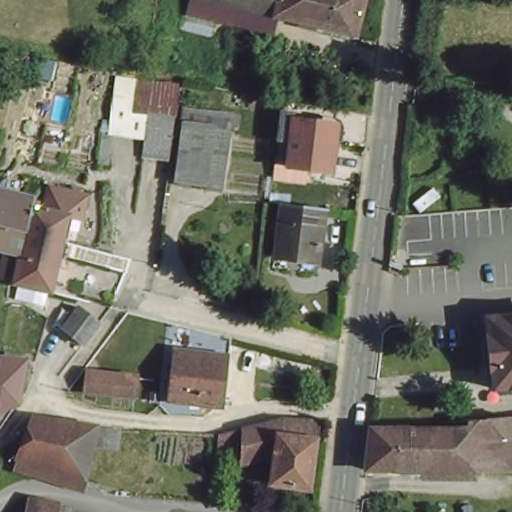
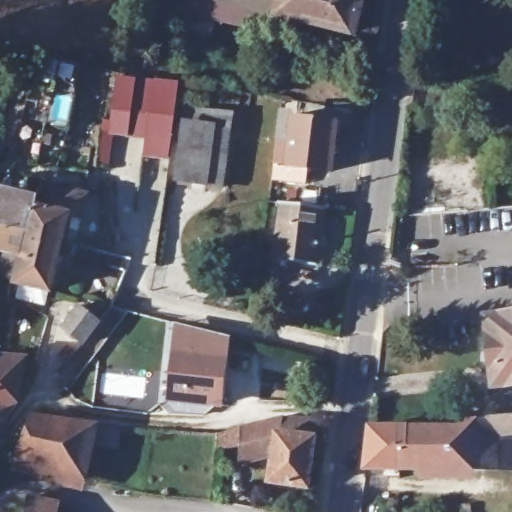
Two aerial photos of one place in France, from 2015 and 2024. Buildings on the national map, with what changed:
unchanged [(350,35),(213,0),(358,0),(350,35)]
unchanged [(145,156),(145,139),(103,132),(112,74),(182,84),(169,156),(145,156)]
unchanged [(335,108),(330,156),(307,153),(305,169),(270,166),(272,149),(278,149),(280,138),(282,120),(284,103),(335,108)]
unchanged [(219,121),(217,176),(187,175),(189,120),(219,121)]
unchanged [(0,262),(3,250),(0,249),(0,225),(5,226),(13,195),(19,196),(31,199),(30,205),(43,208),(48,186),(83,193),(77,215),(65,212),(58,239),(53,260),(46,288),(11,279),(0,276),(0,262)]
unchanged [(323,213),(317,263),(273,258),(279,207),(323,213)]
unchanged [(98,322),(83,343),(60,328),(76,307),(98,322)]
unchanged [(494,389),(486,316),(512,314),(512,387),(494,389)]
unchanged [(226,355),(221,403),(171,398),(176,349),(226,355)]
unchanged [(20,401),(0,411),(0,370),(2,370),(4,361),(0,361),(0,354),(27,358),(20,401)]
unchanged [(140,401),(92,397),(94,378),(105,366),(125,367),(123,380),(141,382),(140,401)]
unchanged [(36,477),(11,470),(15,459),(31,415),(95,426),(108,427),(101,447),(90,444),(83,478),(80,489),(36,477)]
unchanged [(466,466),(465,428),(465,423),(511,418),(512,418),(512,432),(512,443),(512,466),(495,466),(466,466)]
unchanged [(273,467),(236,477),(241,451),(214,448),(216,434),(244,428),(282,420),(273,467)]
unchanged [(328,421),(327,432),(314,431),(304,489),(269,484),(273,467),(282,420),(328,421)]
unchanged [(363,468),(368,429),(396,428),(395,468),(363,468)]
unchanged [(465,428),(466,466),(395,468),(396,428),(465,428)]
unchanged [(55,512),(25,512),(28,497),(57,504),(55,512)]

